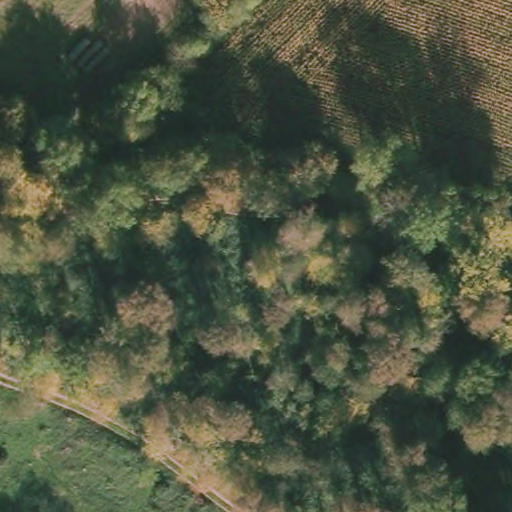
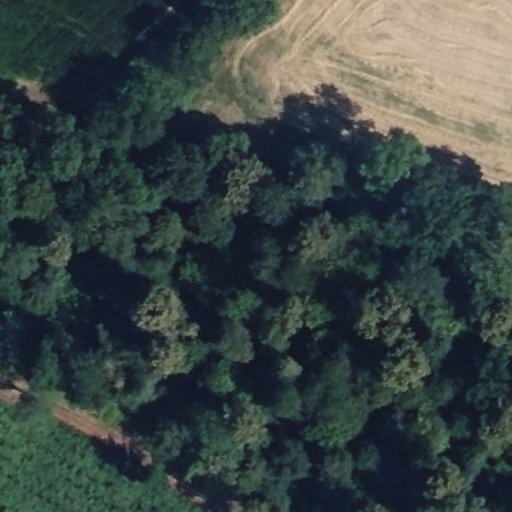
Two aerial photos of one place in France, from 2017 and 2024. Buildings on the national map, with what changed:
unchanged [(311,169),(316,152),(341,159),(337,174),(311,169)]

